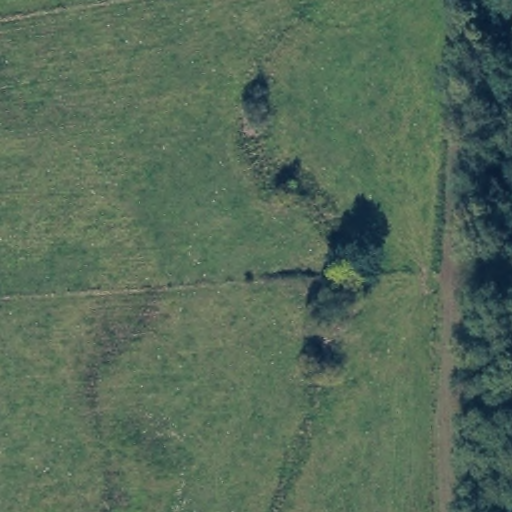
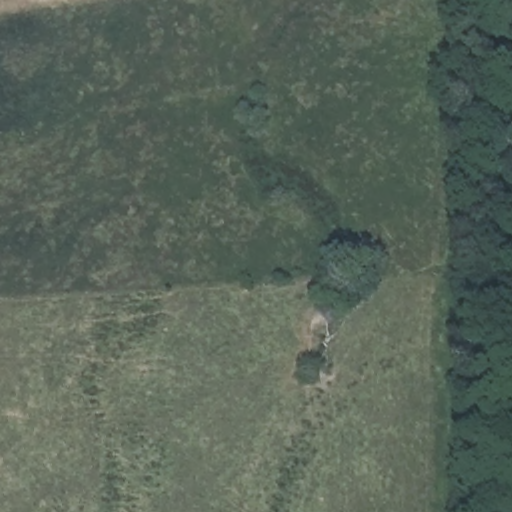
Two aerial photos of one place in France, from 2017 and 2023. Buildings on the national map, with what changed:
[]

